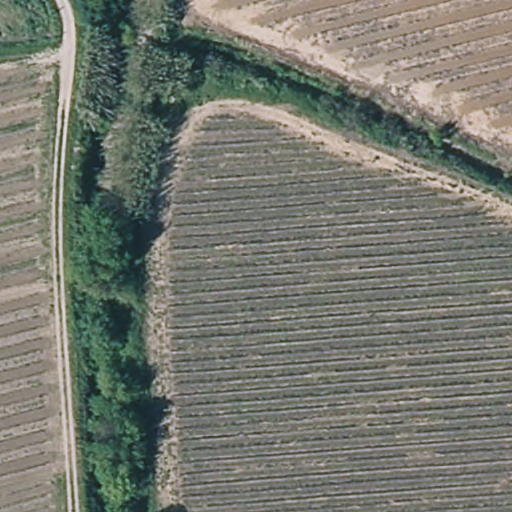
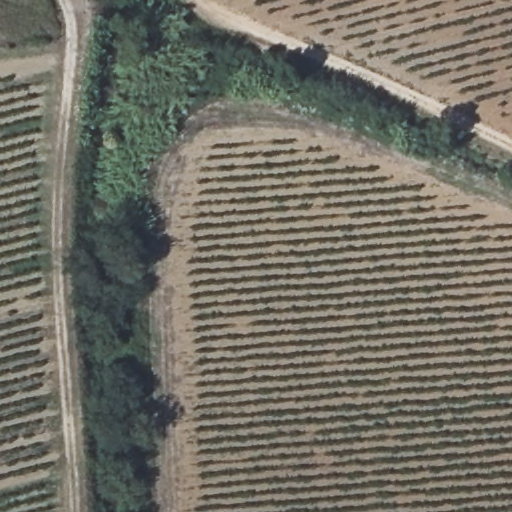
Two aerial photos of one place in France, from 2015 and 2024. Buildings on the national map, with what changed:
unchanged [(179,107),(180,131),(166,133),(164,108),(179,107)]

